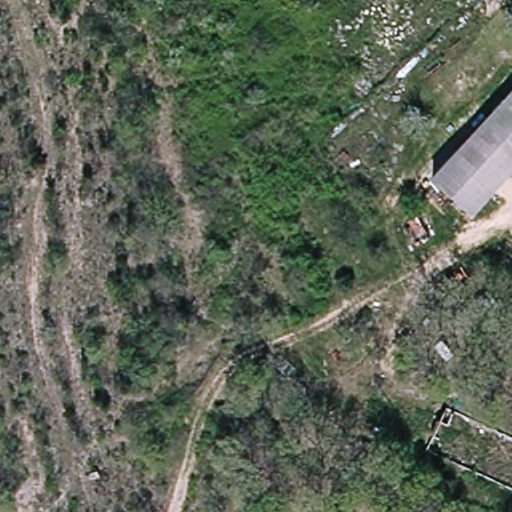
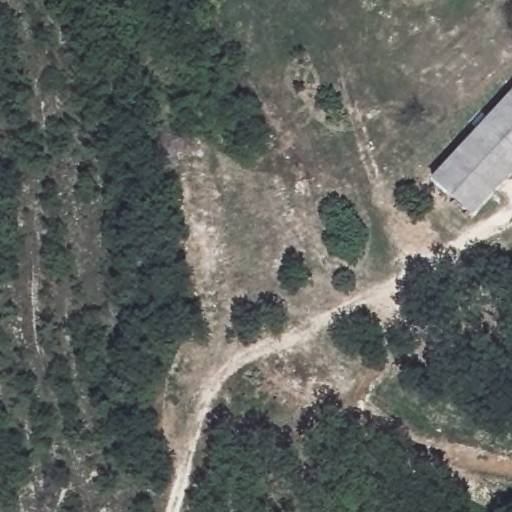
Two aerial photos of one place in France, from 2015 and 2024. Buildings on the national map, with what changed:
unchanged [(512,170),(467,217),(432,177),(512,91),(512,170)]

